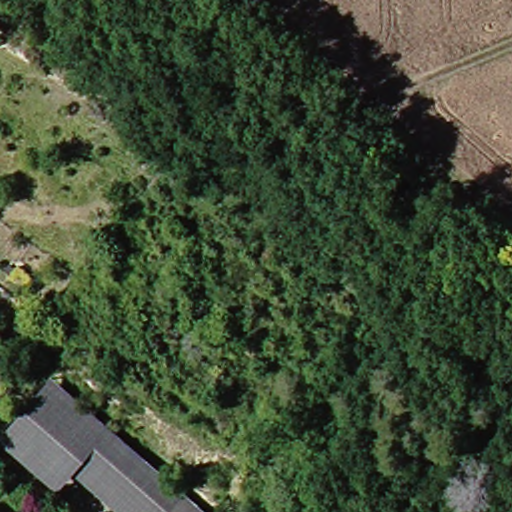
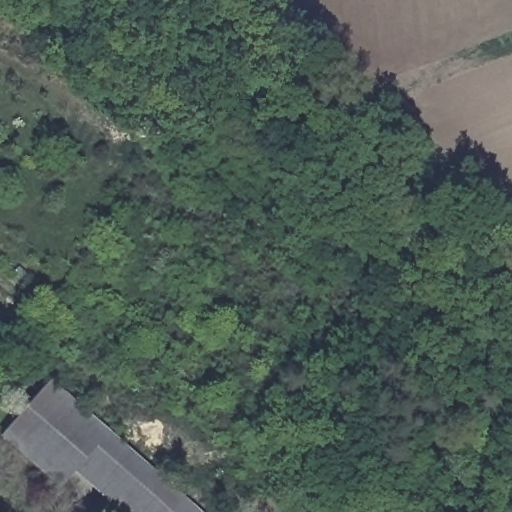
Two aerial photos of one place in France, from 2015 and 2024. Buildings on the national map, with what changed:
unchanged [(72,475),(59,491),(1,444),(49,385),(199,512),(117,512),(72,475)]

